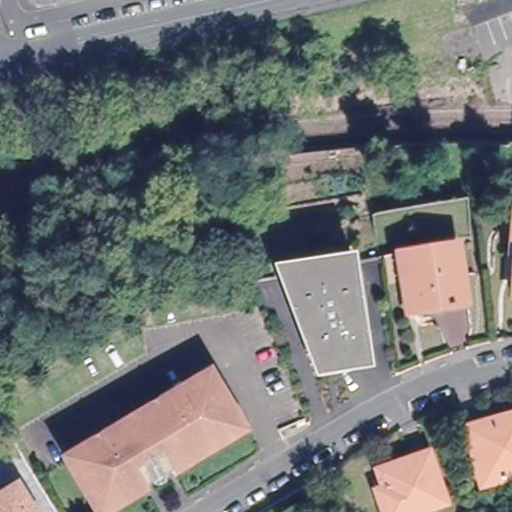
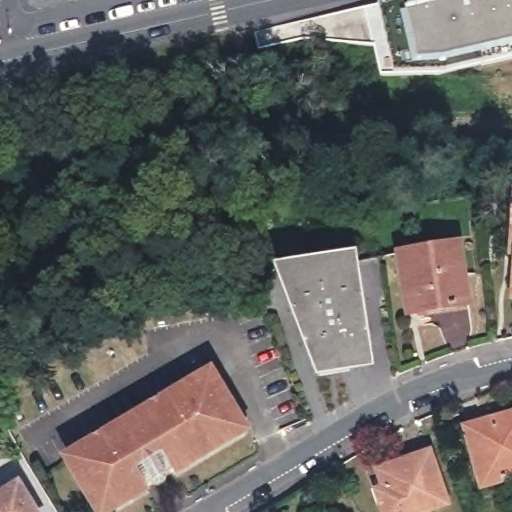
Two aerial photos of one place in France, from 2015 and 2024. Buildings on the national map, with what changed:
new [(512,0),(512,68),(443,84),(394,85),(378,15),(442,0),(512,0)]
unchanged [(407,310),(399,250),(458,242),(466,302),(407,310)]
unchanged [(368,361),(314,369),(277,275),(354,262),(368,361)]
unchanged [(164,478),(163,481),(162,483),(160,485),(157,487),(154,487),(151,487),(149,485),(145,488),(105,512),(97,512),(65,458),(208,373),(242,430),(170,473),(164,476),(164,478)]
unchanged [(478,484),(462,428),(493,419),(512,413),(512,474),(478,484)]
unchanged [(383,488),(376,471),(425,452),(445,502),(419,512),(385,512),(381,503),(376,491),(383,488)]
unchanged [(35,512),(0,512),(0,496),(18,485),(35,512)]

